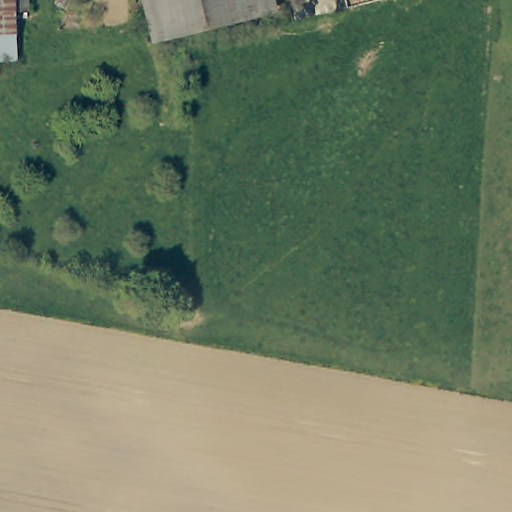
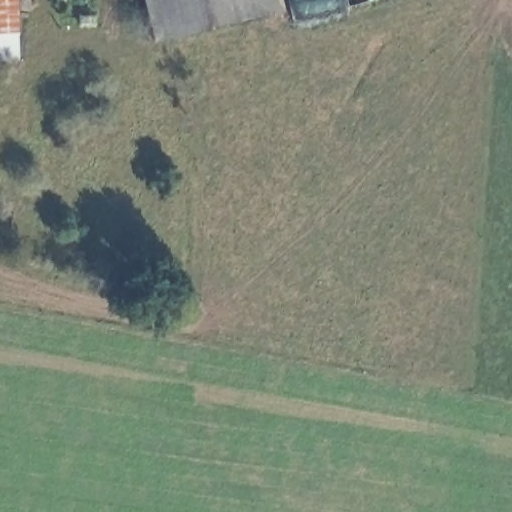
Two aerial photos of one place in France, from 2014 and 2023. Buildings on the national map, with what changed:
unchanged [(29,5),(15,6),(17,54),(0,55),(0,0),(29,0),(29,5)]
unchanged [(269,13),(154,41),(143,0),(266,0),(269,13)]

